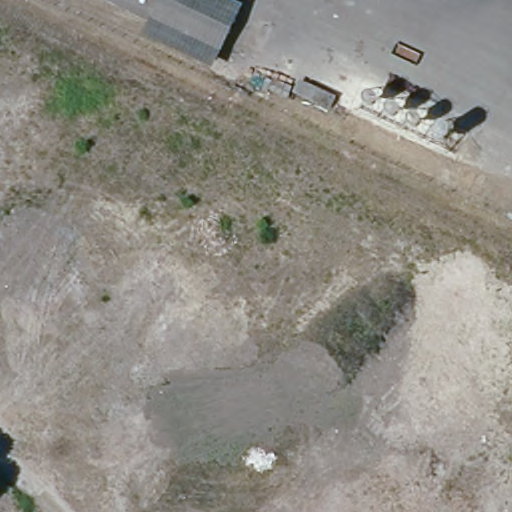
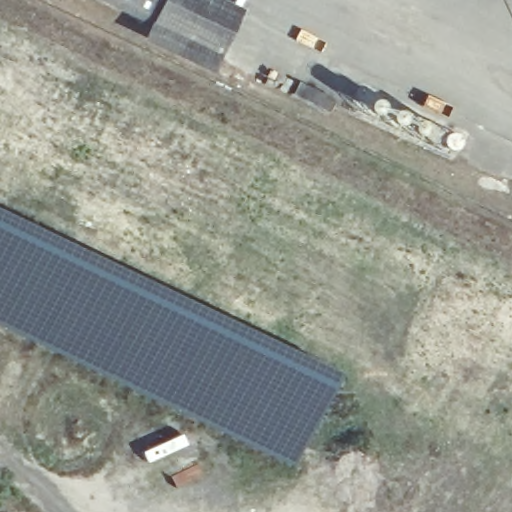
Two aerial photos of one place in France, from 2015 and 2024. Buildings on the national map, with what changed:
unchanged [(161,30),(103,0),(220,0),(243,12),(220,57),(161,30)]
unchanged [(213,75),(150,48),(161,30),(220,57),(213,75)]
new [(335,371),(320,406),(290,465),(160,402),(47,349),(0,325),(0,210),(335,371)]
new [(199,462),(206,476),(178,490),(171,476),(199,462)]

